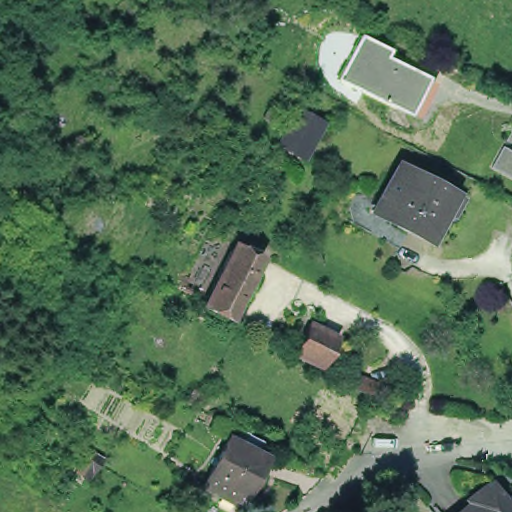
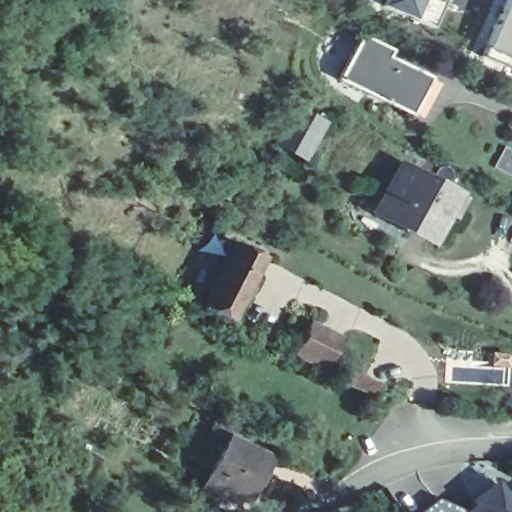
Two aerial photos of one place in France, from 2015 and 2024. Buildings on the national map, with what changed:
new [(381,6),(383,0),(422,0),(413,20),(381,6)]
new [(512,0),(512,68),(511,70),(479,53),(503,0),(512,0)]
unchanged [(408,86),(397,107),(343,80),(366,36),(394,51),(390,57),(427,76),(418,91),(408,86)]
unchanged [(318,121),(299,155),(275,143),(295,108),(318,121)]
unchanged [(512,132),(512,138),(510,136),(512,132)]
unchanged [(506,143),(512,146),(512,173),(495,164),(506,143)]
unchanged [(381,196),(400,161),(460,193),(450,209),(444,207),(428,236),(391,217),(375,208),(381,196)]
unchanged [(198,302),(213,274),(226,248),(231,237),(259,253),(254,262),(240,288),(225,315),(198,302)]
unchanged [(321,367),(293,354),(307,327),(308,325),(336,339),(335,341),(321,367)]
unchanged [(226,492),(207,482),(232,432),(270,452),(249,492),(245,501),(226,492)]
unchanged [(482,505),(480,501),(500,486),(512,500),(512,512),(474,512),(482,505)]

